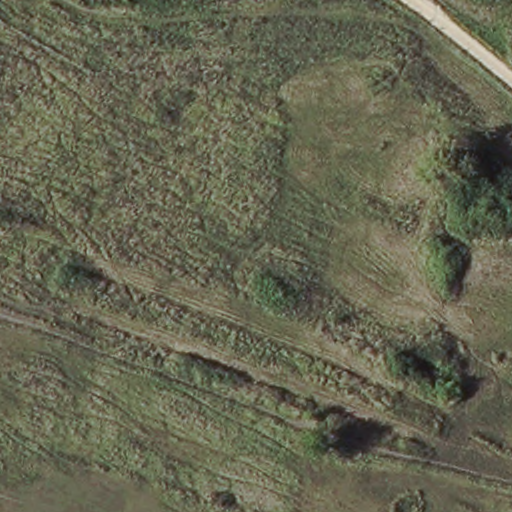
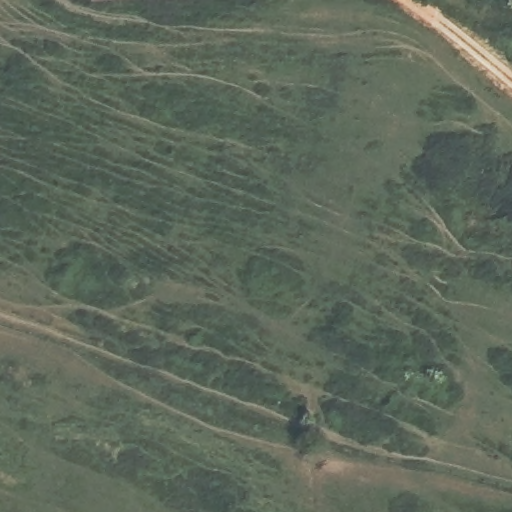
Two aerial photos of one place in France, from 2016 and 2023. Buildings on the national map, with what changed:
unchanged [(84,1),(84,0),(141,0),(84,1)]

